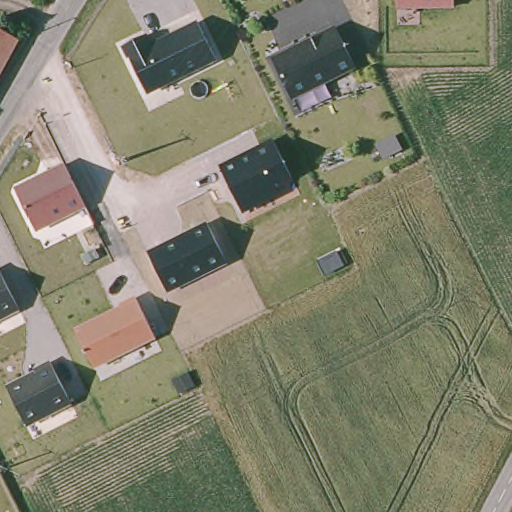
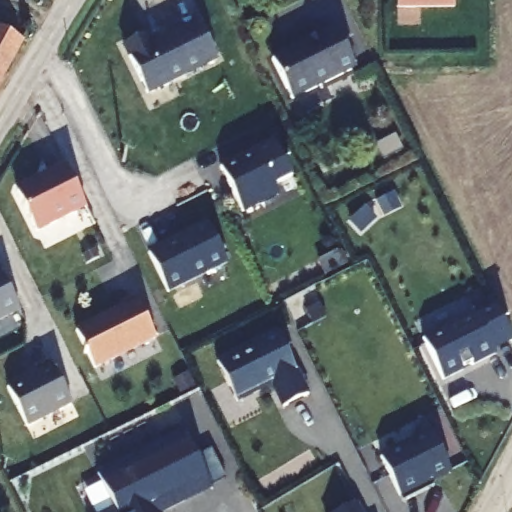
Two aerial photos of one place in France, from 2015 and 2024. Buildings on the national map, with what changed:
unchanged [(455,0),(455,8),(396,8),(396,0),(455,0)]
unchanged [(157,32),(162,41),(197,24),(215,63),(145,94),(123,47),(157,32)]
unchanged [(340,27),(359,69),(289,100),(270,59),(340,27)]
unchanged [(0,81),(0,37),(15,44),(0,81)]
unchanged [(272,140),(295,184),(242,210),(219,165),(272,140)]
unchanged [(65,164),(86,209),(36,232),(14,188),(65,164)]
unchanged [(207,225),(225,264),(168,291),(149,252),(207,225)]
unchanged [(0,322),(0,275),(19,312),(0,322)]
new [(474,313),(471,306),(493,297),(512,338),(512,348),(445,382),(422,337),(474,313)]
unchanged [(135,300),(155,341),(95,369),(74,328),(135,300)]
new [(280,331),(310,395),(283,407),(271,383),(236,399),(218,362),(280,331)]
unchanged [(52,364),(73,407),(27,428),(7,387),(52,364)]
new [(210,490),(162,512),(104,512),(112,508),(96,473),(182,429),(210,490)]
new [(432,434),(451,471),(430,481),(434,487),(402,502),(380,458),(432,434)]
new [(360,501),(366,512),(339,512),(360,501)]

